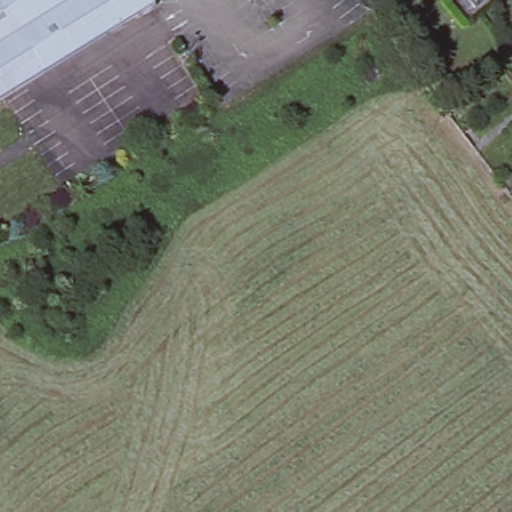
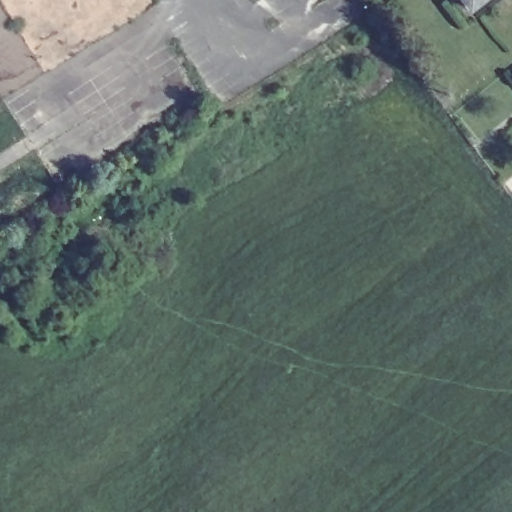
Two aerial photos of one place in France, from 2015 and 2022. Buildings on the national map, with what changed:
demolished [(154,5),(0,100),(0,0),(154,0),(154,5)]
unchanged [(474,8),(467,0),(485,0),(474,8)]

